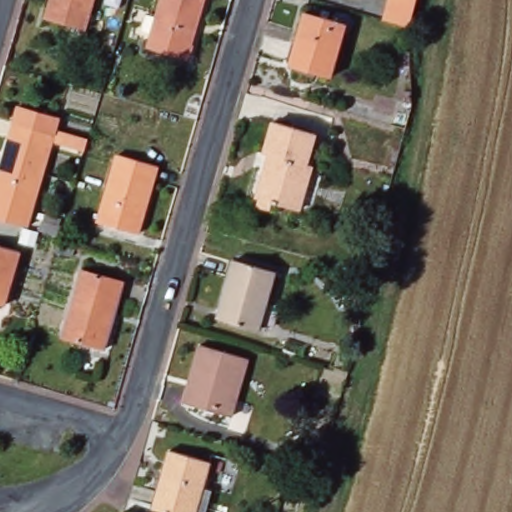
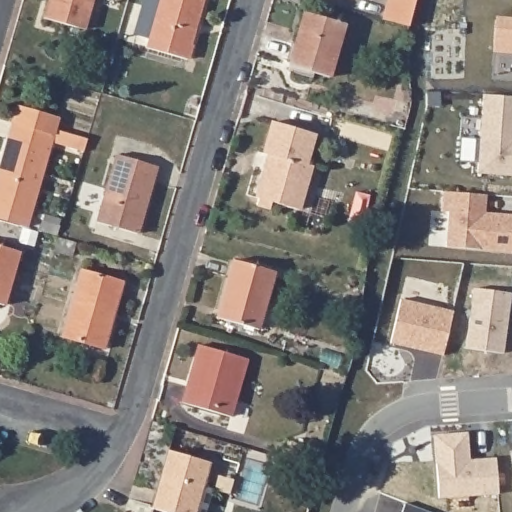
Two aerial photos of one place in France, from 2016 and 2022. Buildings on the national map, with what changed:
unchanged [(86,30),(44,17),(50,0),(95,0),(86,30)]
unchanged [(188,59),(146,47),(159,0),(205,0),(188,59)]
unchanged [(415,5),(410,22),(409,22),(408,22),(407,23),(407,24),(406,25),(383,19),(388,0),(416,0),(415,5)]
unchanged [(305,11),(345,24),(330,77),(289,65),(305,11)]
new [(496,16),(512,16),(512,54),(493,53),(496,16)]
new [(482,94),(512,97),(512,176),(478,174),(482,94)]
unchanged [(58,111),(55,124),(87,133),(83,145),(51,135),(33,199),(0,189),(0,164),(18,100),(58,111)]
unchanged [(306,164),(311,165),(299,210),(272,202),(270,209),(257,205),(259,198),(257,197),(265,170),(268,170),(272,156),(264,154),(273,120),(315,133),(306,164)]
unchanged [(117,154),(157,165),(138,234),(98,222),(117,154)]
unchanged [(33,199),(27,221),(0,214),(0,189),(33,199)]
new [(449,210),(441,210),(442,191),(486,194),(487,210),(512,213),(512,252),(446,247),(449,210)]
unchanged [(76,242),(72,255),(54,250),(58,236),(76,242)]
unchanged [(20,251),(4,305),(0,304),(0,245),(20,251)]
unchanged [(234,260),(275,271),(259,330),(217,317),(234,260)]
unchanged [(103,348),(62,336),(81,269),(124,281),(115,313),(105,349),(103,348)]
new [(503,353),(465,348),(472,287),(511,293),(503,353)]
new [(443,355),(392,342),(401,299),(452,311),(443,355)]
unchanged [(248,358),(231,416),(183,402),(200,344),(248,358)]
new [(499,493),(439,498),(434,435),(468,430),(470,459),(497,456),(499,493)]
unchanged [(325,451),(323,458),(322,462),(320,468),(286,458),(291,441),(325,451)]
unchanged [(169,450),(210,461),(203,487),(211,490),(205,512),(166,512),(152,508),(169,450)]
new [(433,512),(402,512),(405,501),(433,512)]

